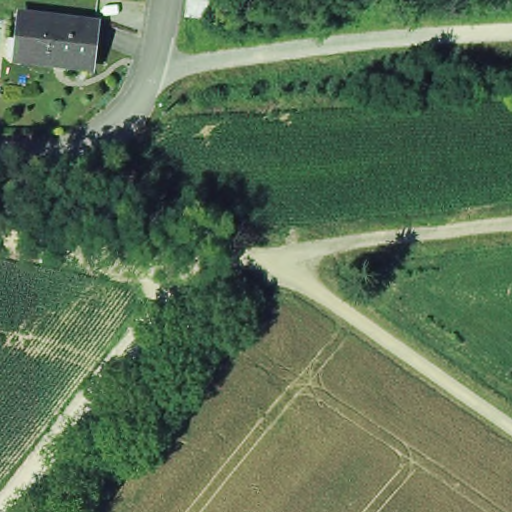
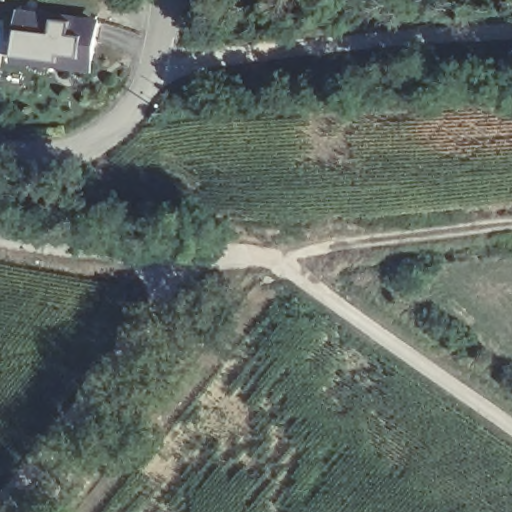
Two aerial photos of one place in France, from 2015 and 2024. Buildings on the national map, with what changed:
unchanged [(185,16),(187,0),(206,0),(204,17),(185,16)]
unchanged [(96,20),(91,65),(29,58),(31,39),(18,38),(20,11),(96,20)]

